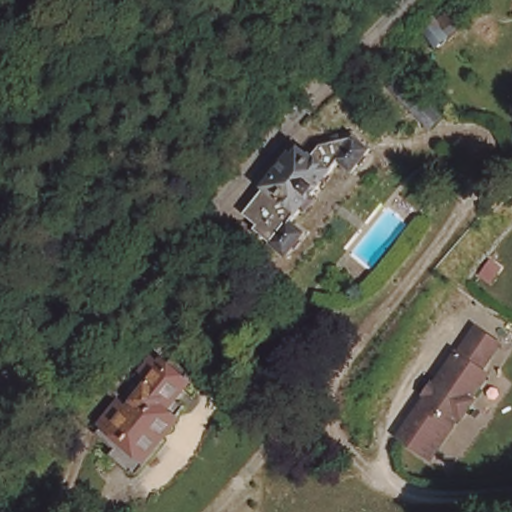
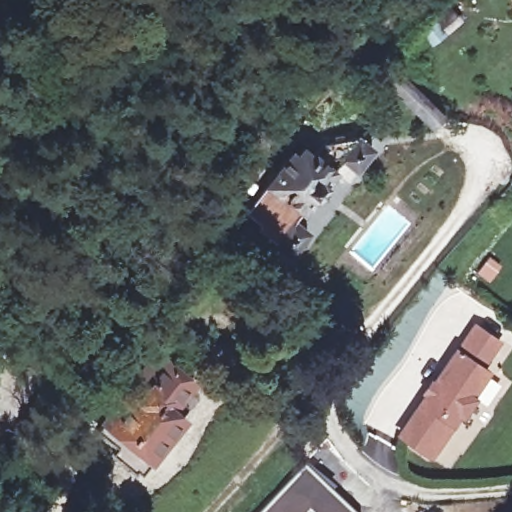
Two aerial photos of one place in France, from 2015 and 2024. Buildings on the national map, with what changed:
unchanged [(440,106),(428,119),(387,77),(400,64),(440,106)]
unchanged [(350,160),(338,150),(292,211),(307,222),(289,245),(254,219),(257,215),(243,204),(258,185),(290,144),(294,147),(298,141),(310,150),(322,134),(353,126),(368,139),(350,160)]
unchanged [(424,395),(420,392),(429,380),(432,383),(445,364),(448,366),(457,354),(453,352),(464,336),(472,324),(497,342),(490,354),(480,369),(485,373),(469,397),(470,401),(460,413),(457,414),(439,439),(427,457),(418,452),(395,436),(424,395)]
unchanged [(147,476),(127,460),(132,453),(113,438),(138,406),(122,394),(155,353),(177,371),(178,368),(182,370),(188,361),(205,375),(199,384),(201,385),(197,391),(207,400),(147,476)]
new [(359,512),(255,512),(305,460),(359,512)]

